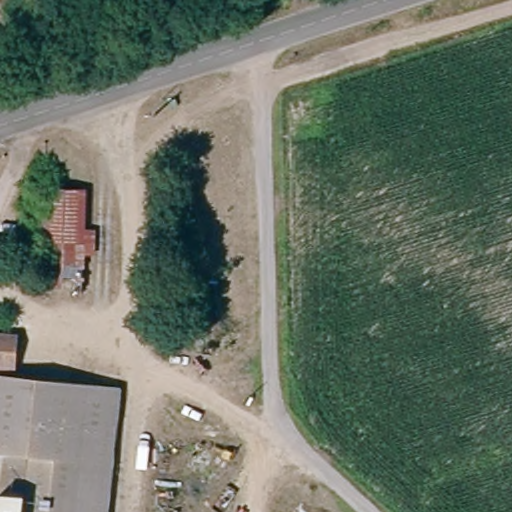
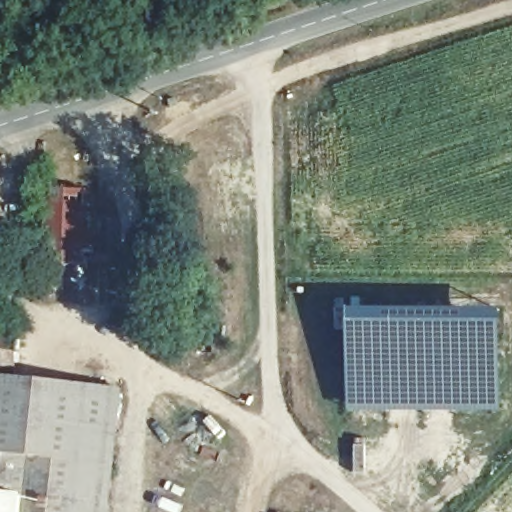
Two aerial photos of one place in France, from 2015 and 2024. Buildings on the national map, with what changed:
unchanged [(82,230),(92,231),(90,255),(79,255),(74,292),(37,289),(47,188),(85,192),(82,230)]
new [(347,306),(502,306),(500,411),(345,411),(347,306)]
unchanged [(11,357),(0,356),(0,324),(15,325),(11,357)]
unchanged [(54,379),(117,384),(106,512),(0,512),(0,375),(54,379)]

